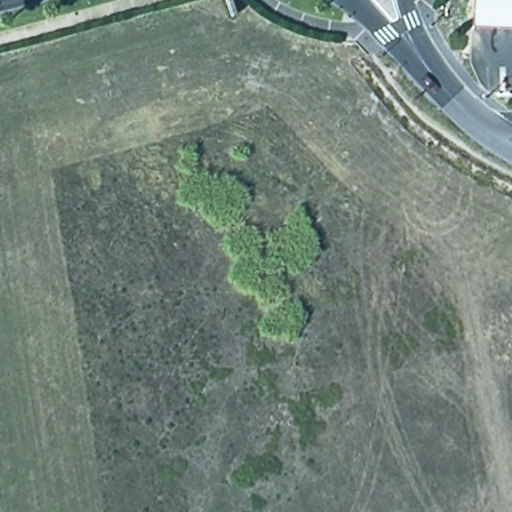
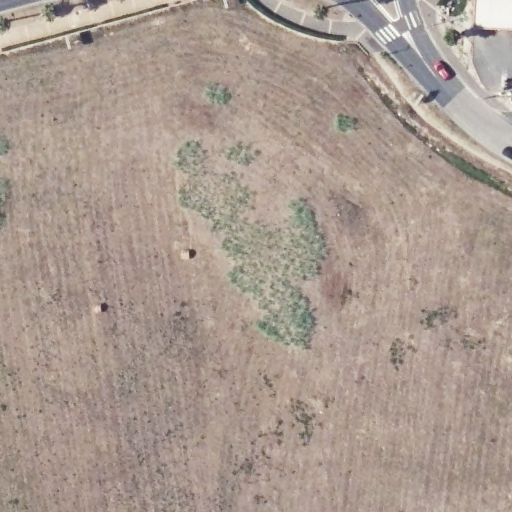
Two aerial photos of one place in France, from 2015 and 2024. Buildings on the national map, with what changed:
unchanged [(475,27),(477,0),(512,0),(512,28),(475,27)]

